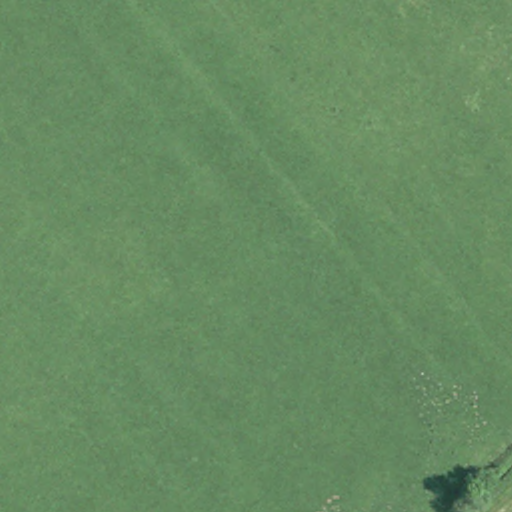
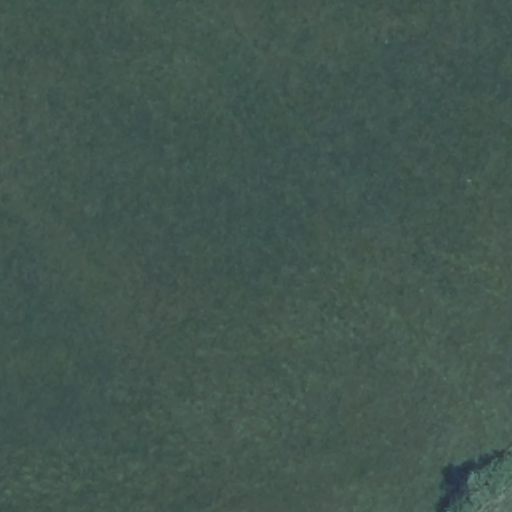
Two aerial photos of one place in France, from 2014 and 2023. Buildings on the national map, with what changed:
[]

